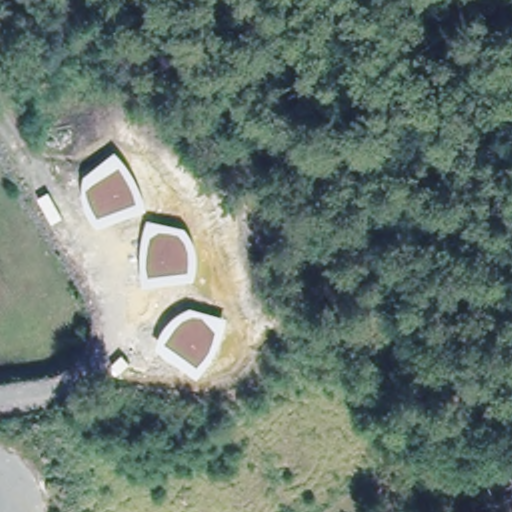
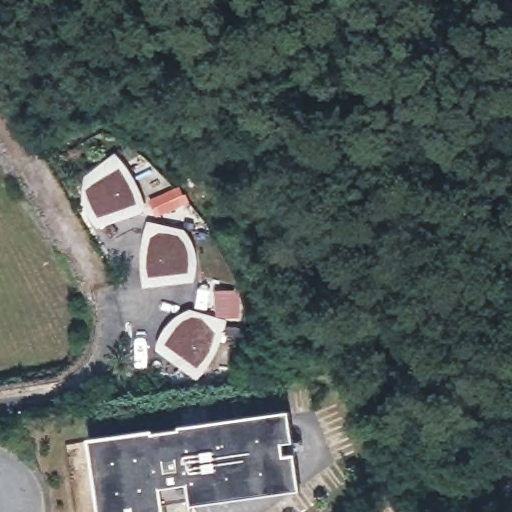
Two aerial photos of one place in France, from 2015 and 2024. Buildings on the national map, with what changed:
new [(85,187),(85,181),(87,171),(116,147),(118,154),(90,172),(112,208),(130,197),(139,208),(146,205),(146,207),(101,222),(92,211),(87,200),(85,192),(85,187)]
unchanged [(118,154),(125,162),(134,175),(141,190),(146,205),(139,208),(130,197),(112,208),(90,172),(118,154)]
new [(169,193),(176,208),(161,214),(155,199),(169,193)]
new [(156,279),(159,265),(180,268),(184,225),(151,222),(150,215),(186,224),(192,232),(195,237),(197,242),(199,249),(200,262),(197,275),(150,281),(149,280),(156,279)]
unchanged [(146,248),(148,232),(151,222),(184,225),(180,268),(159,265),(156,279),(149,280),(146,265),(146,248)]
new [(163,330),(167,324),(169,320),(175,314),(179,310),(184,308),(193,303),(229,314),(225,319),(194,306),(178,345),(197,353),(193,367),(199,371),(198,372),(159,344),(163,330)]
unchanged [(194,306),(225,319),(222,329),(217,344),(208,359),(199,371),(193,367),(197,353),(178,345),(194,306)]
new [(96,439),(98,435),(143,429),(142,428),(157,426),(187,422),(291,408),(295,436),(282,438),(232,444),(191,450),(195,480),(161,484),(148,490),(133,494),(128,494),(122,494),(117,494),(112,494),(107,493),(104,491),(103,491),(99,485),(99,478),(104,467),(104,464),(103,460),(96,453),(94,448),(94,444),(96,439)]
new [(232,444),(237,478),(252,476),(252,477),(257,477),(257,475),(277,472),(286,466),(282,438),(295,436),(302,484),(197,499),(195,480),(191,450),(232,444)]
new [(282,438),(286,466),(277,472),(257,475),(257,477),(252,477),(252,476),(237,478),(232,444),(282,438)]
new [(107,493),(112,494),(117,494),(122,494),(128,494),(133,494),(148,490),(161,484),(195,480),(197,499),(166,503),(167,512),(107,512),(104,491),(107,493)]

